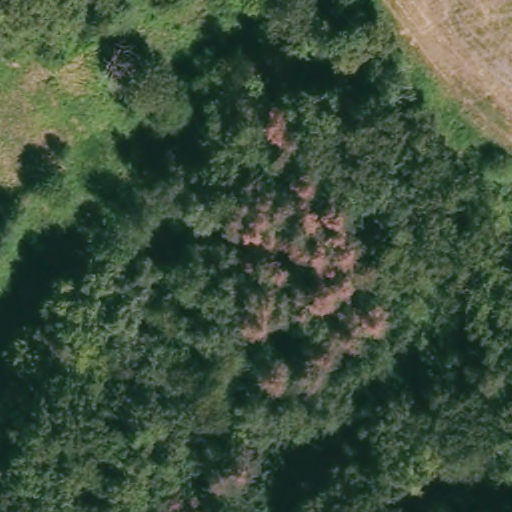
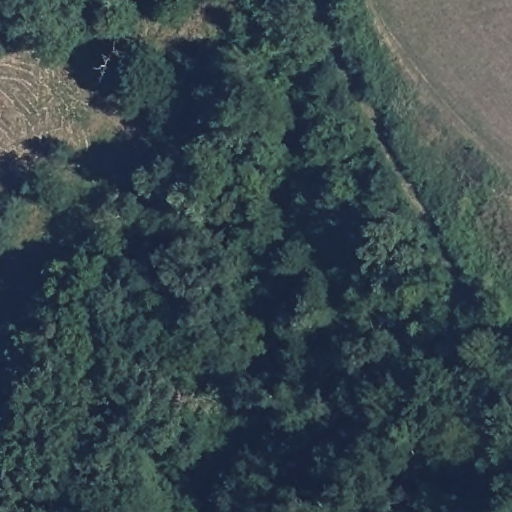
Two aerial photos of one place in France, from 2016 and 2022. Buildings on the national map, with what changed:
[]

